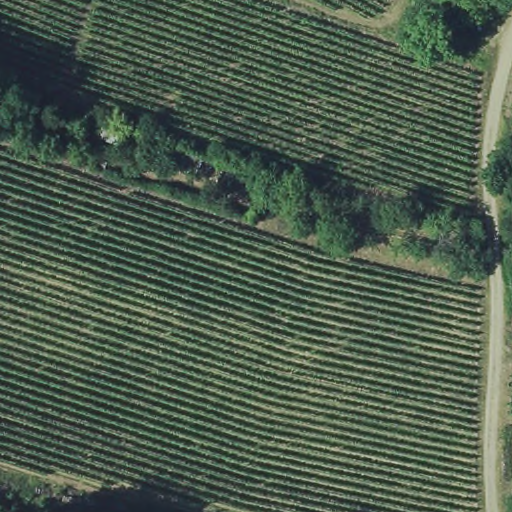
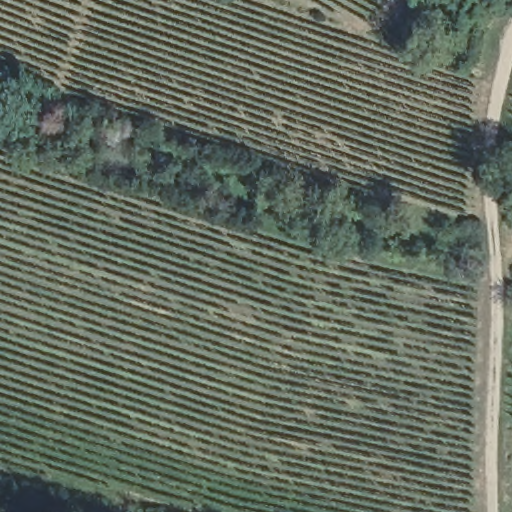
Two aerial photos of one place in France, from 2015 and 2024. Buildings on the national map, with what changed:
unchanged [(472,26),(486,30),(480,50),(465,45),(472,26)]
unchanged [(504,433),(512,433),(512,452),(504,452),(504,433)]

